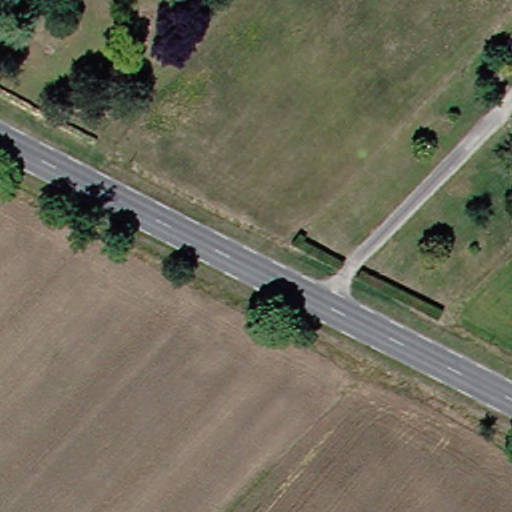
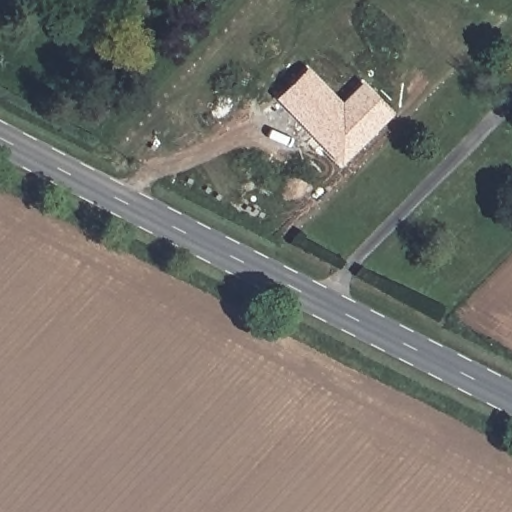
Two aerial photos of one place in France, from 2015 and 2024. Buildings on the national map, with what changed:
new [(341,168),(275,101),(307,67),(342,104),(362,84),(395,117),(341,168)]

